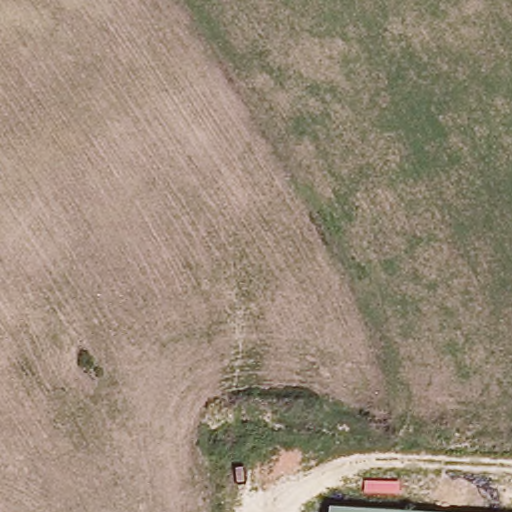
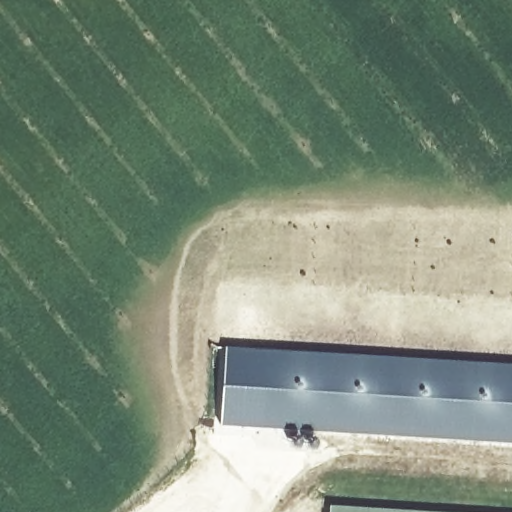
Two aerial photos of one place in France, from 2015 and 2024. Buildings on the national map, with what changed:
new [(224,347),(435,358),(512,363),(512,443),(219,425),(224,347)]
unchanged [(430,512),(328,512),(329,500),(430,512)]

